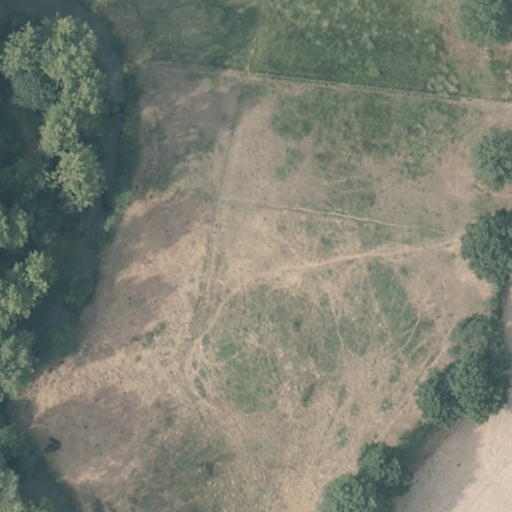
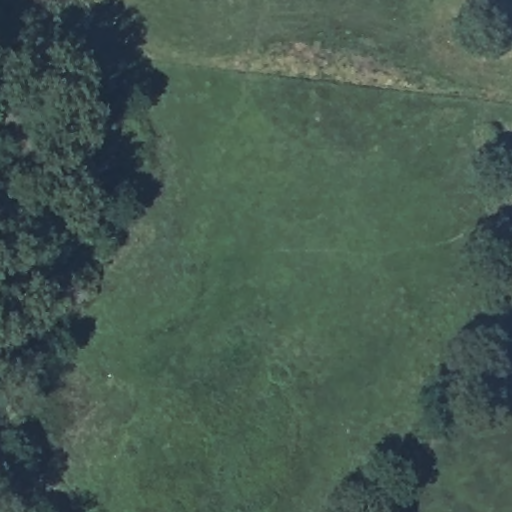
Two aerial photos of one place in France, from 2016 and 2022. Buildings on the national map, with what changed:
[]

